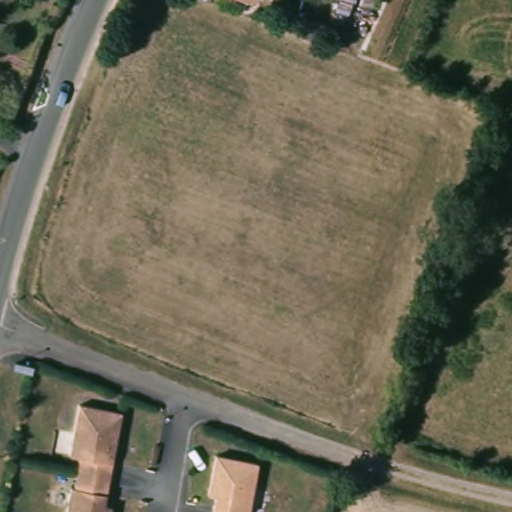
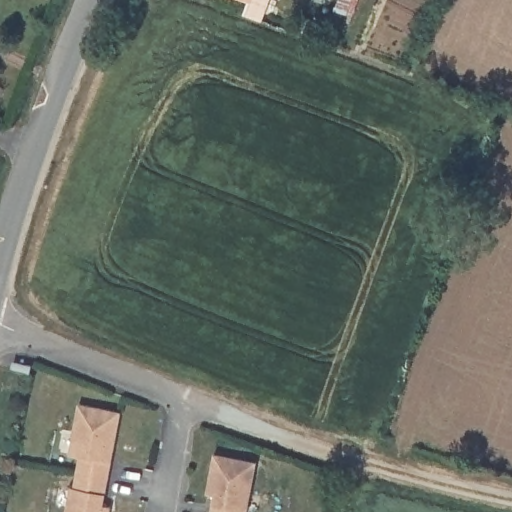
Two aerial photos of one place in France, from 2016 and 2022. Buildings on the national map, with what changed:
unchanged [(120,413),(113,452),(105,451),(105,453),(103,461),(111,463),(103,505),(110,507),(109,512),(65,512),(70,487),(74,488),(80,457),(69,455),(72,439),(79,404),(120,413)]
unchanged [(252,511),(251,512),(211,512),(215,496),(207,494),(208,493),(215,456),(261,463),(252,511)]

